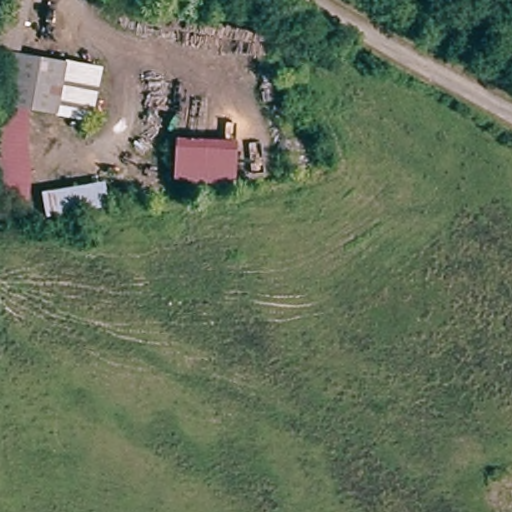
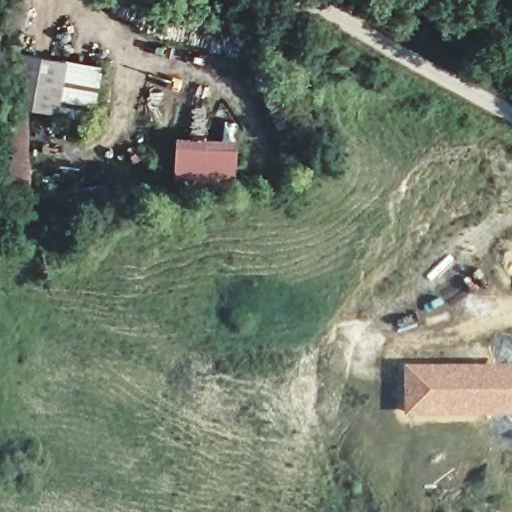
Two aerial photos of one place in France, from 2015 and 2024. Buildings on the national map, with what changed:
unchanged [(10,203),(0,201),(0,61),(1,58),(14,61),(6,111),(24,114),(10,203)]
unchanged [(24,114),(6,111),(14,61),(64,68),(56,120),(24,114)]
unchanged [(96,73),(88,125),(56,120),(64,68),(96,73)]
unchanged [(241,141),(238,175),(174,170),(177,136),(241,141)]
unchanged [(45,184),(109,173),(130,175),(130,197),(51,212),(45,184)]
new [(503,370),(503,391),(485,391),(486,410),(407,412),(408,369),(503,370)]

